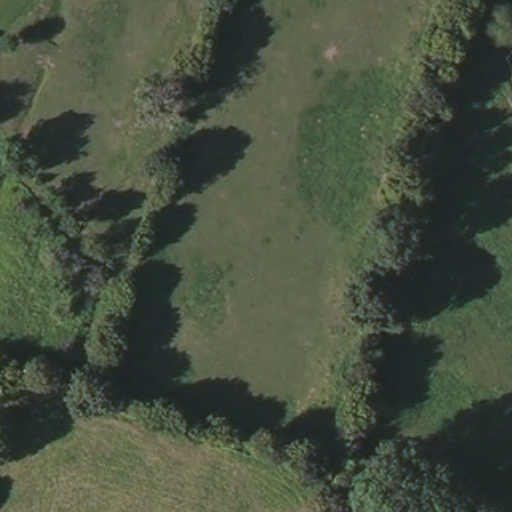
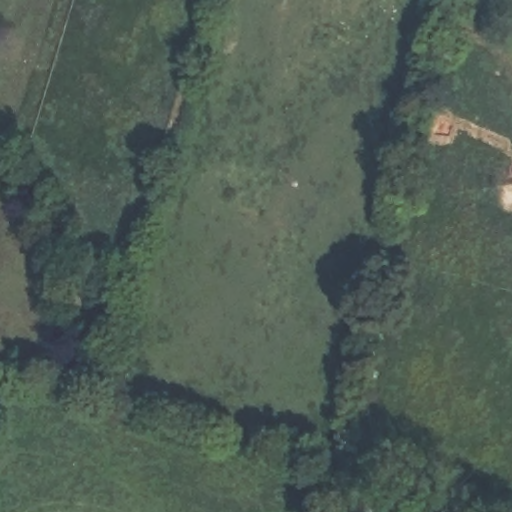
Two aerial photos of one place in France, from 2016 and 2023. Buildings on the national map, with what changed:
[]

